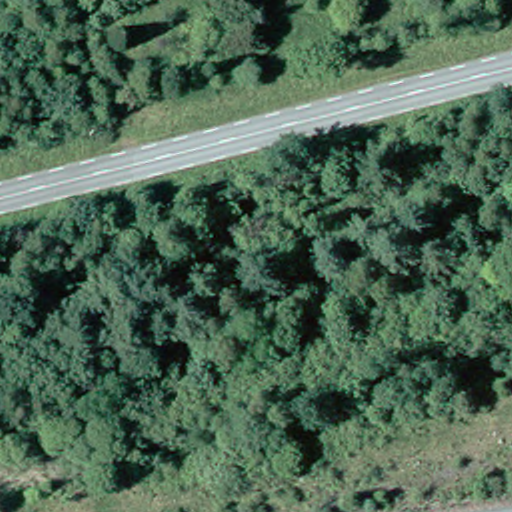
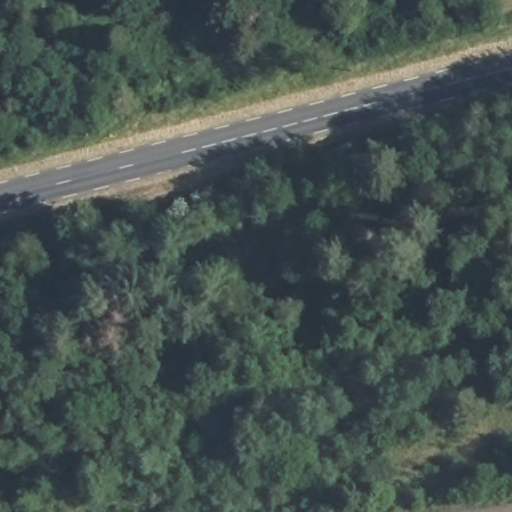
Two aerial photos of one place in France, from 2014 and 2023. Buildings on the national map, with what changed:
unchanged [(45,80),(38,55),(51,52),(57,77),(45,80)]

